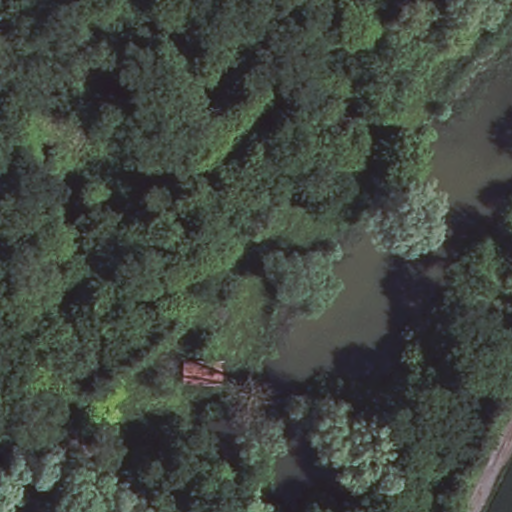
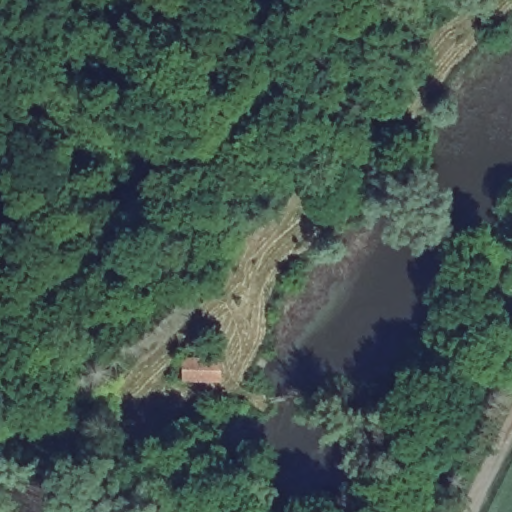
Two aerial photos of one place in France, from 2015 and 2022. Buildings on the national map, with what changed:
unchanged [(222,382),(205,381),(185,381),(185,360),(206,360),(223,361),(222,382)]

